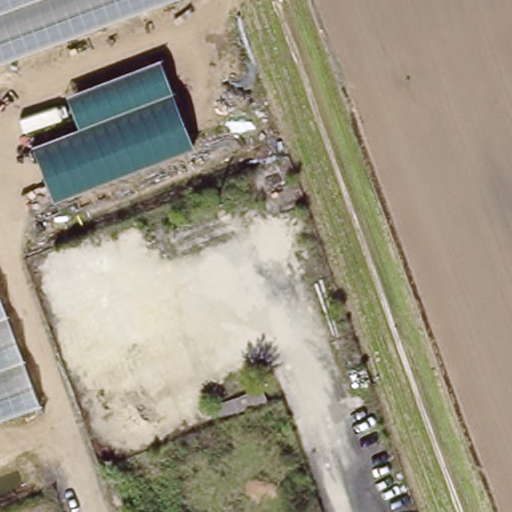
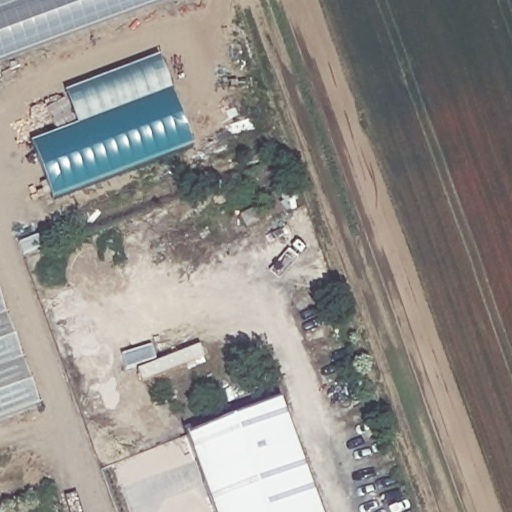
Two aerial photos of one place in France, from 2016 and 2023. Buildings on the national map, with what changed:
unchanged [(0,0),(173,0),(0,62),(0,0)]
unchanged [(53,192),(36,144),(80,128),(68,92),(161,59),(193,145),(53,192)]
unchanged [(0,421),(0,298),(40,407),(0,421)]
new [(188,437),(280,400),(321,512),(214,512),(188,437)]

